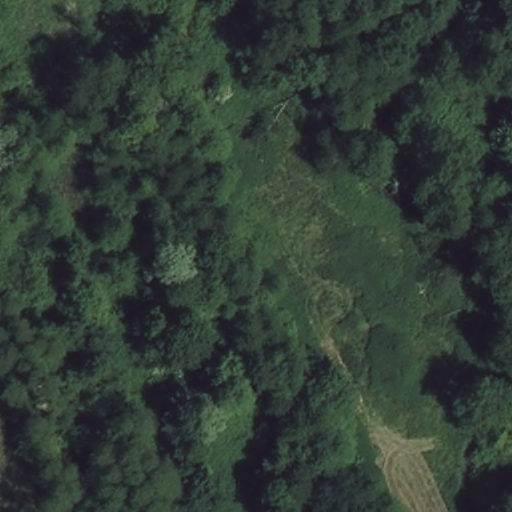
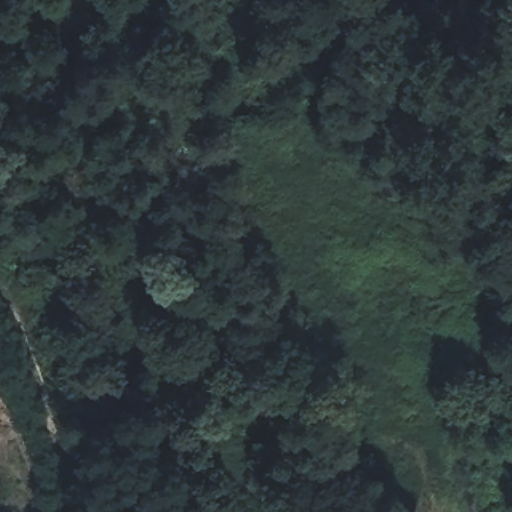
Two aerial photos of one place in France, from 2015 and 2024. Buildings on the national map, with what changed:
[]

